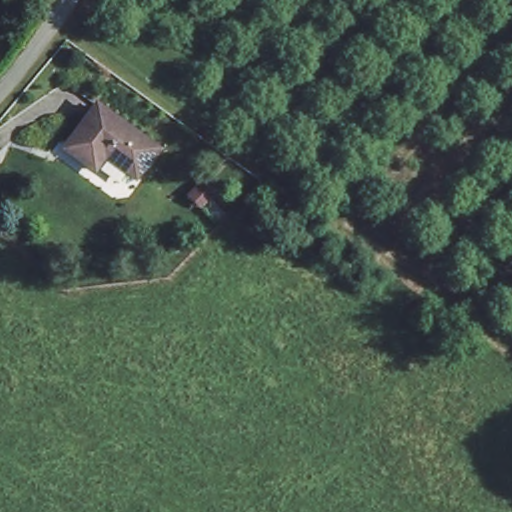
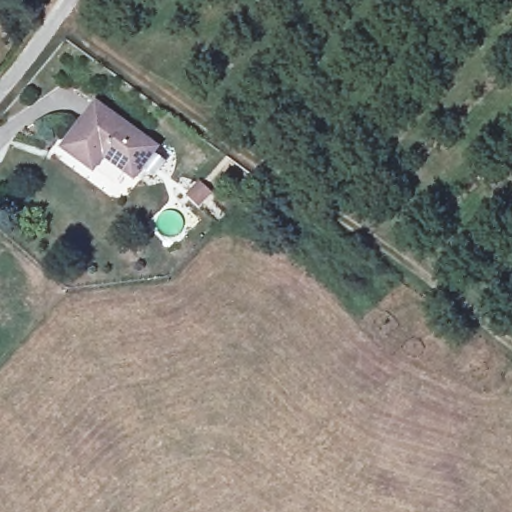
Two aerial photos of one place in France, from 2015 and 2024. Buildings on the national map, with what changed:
unchanged [(98,102),(157,149),(136,178),(108,157),(98,170),(66,145),(98,102)]
unchanged [(205,195),(215,205),(204,216),(194,206),(205,195)]

